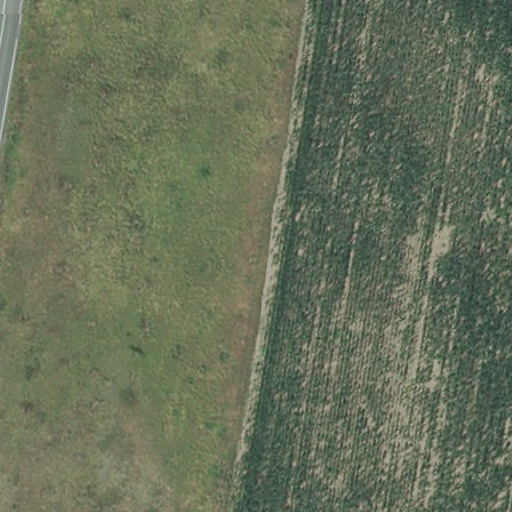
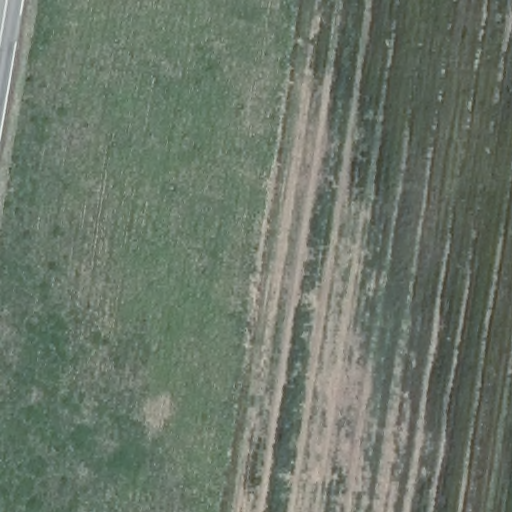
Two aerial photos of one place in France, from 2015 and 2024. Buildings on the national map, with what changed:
[]

